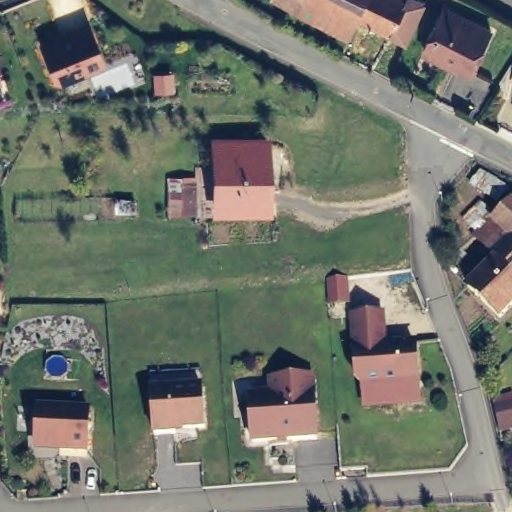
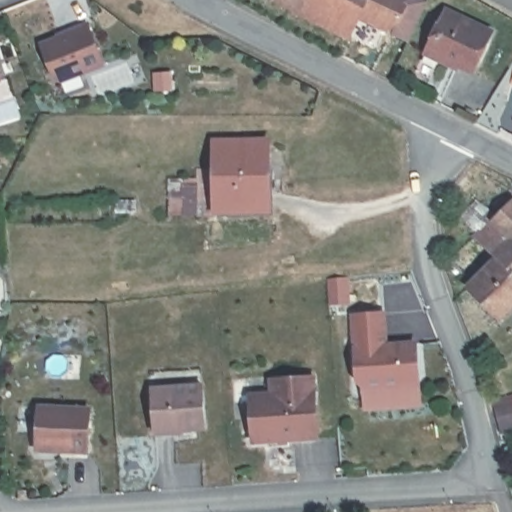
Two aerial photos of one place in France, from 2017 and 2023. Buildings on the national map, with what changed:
unchanged [(358,24),(349,42),(274,4),(276,0),(367,0),(358,24)]
unchanged [(425,10),(407,47),(358,24),(367,0),(404,0),(425,10)]
unchanged [(494,28),(476,69),(447,55),(446,58),(427,50),(447,7),(494,28)]
unchanged [(77,34),(76,30),(91,24),(107,64),(65,80),(59,77),(47,45),(77,34)]
unchanged [(0,87),(0,75),(3,86),(0,87)]
unchanged [(218,170),(217,145),(270,145),(270,215),(221,214),(218,170)]
unchanged [(172,184),(198,184),(198,170),(218,170),(221,214),(220,221),(198,222),(198,216),(172,216),(172,184)]
unchanged [(498,311),(465,280),(480,265),(492,251),(470,230),(505,197),(512,191),(512,297),(498,311)]
unchanged [(132,204),(132,217),(111,216),(112,205),(132,204)]
unchanged [(352,315),(382,313),(385,345),(415,343),(417,383),(365,387),(357,380),(352,315)]
unchanged [(271,398),(270,385),(312,382),(317,442),(252,447),(249,400),(271,398)]
unchanged [(418,406),(363,410),(365,387),(417,383),(418,406)]
unchanged [(205,433),(175,435),(176,437),(154,439),(150,394),(202,390),(205,433)]
unchanged [(500,435),(495,408),(512,403),(512,433),(500,435)]
unchanged [(87,452),(60,450),(57,446),(36,445),(38,407),(88,410),(87,452)]

